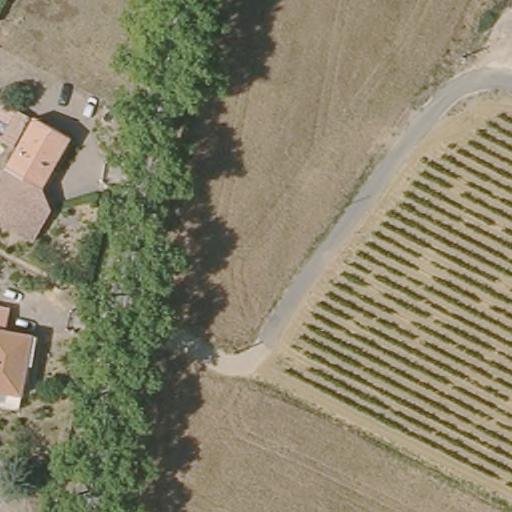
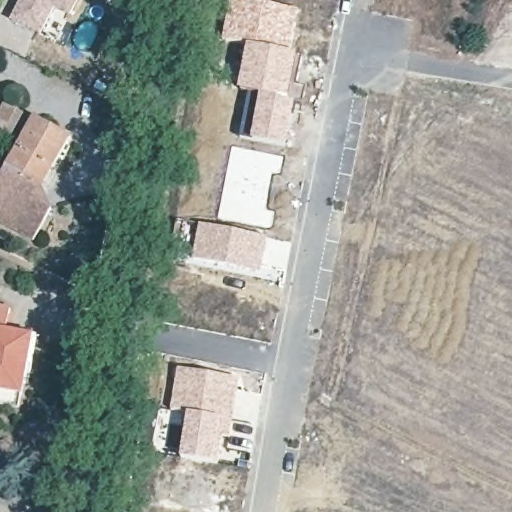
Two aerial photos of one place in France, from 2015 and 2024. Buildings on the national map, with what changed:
new [(56,9),(42,36),(13,22),(24,0),(80,0),(72,16),(56,9)]
new [(254,0),(297,8),(292,51),(245,45),(221,41),(229,0),(254,0)]
new [(292,51),(297,56),(302,56),(297,86),(305,88),(302,101),(293,100),(287,99),(258,95),(240,90),(248,45),(292,51)]
new [(258,95),(293,100),(285,145),(250,139),(258,95)]
unchanged [(0,124),(4,118),(0,114),(0,113),(8,101),(35,114),(20,145),(0,134),(0,124)]
unchanged [(10,163),(20,145),(37,113),(79,138),(50,187),(10,163)]
new [(230,146),(282,156),(280,174),(272,173),(266,208),(274,210),(270,228),(217,218),(230,146)]
unchanged [(42,239),(0,217),(0,182),(11,163),(50,187),(54,208),(42,239)]
new [(198,223),(267,237),(260,272),(190,258),(198,223)]
unchanged [(28,367),(25,386),(23,396),(0,392),(0,308),(12,311),(7,332),(34,337),(39,338),(33,367),(28,367)]
new [(176,366),(238,378),(229,437),(222,437),(217,464),(179,458),(185,413),(169,410),(176,366)]

